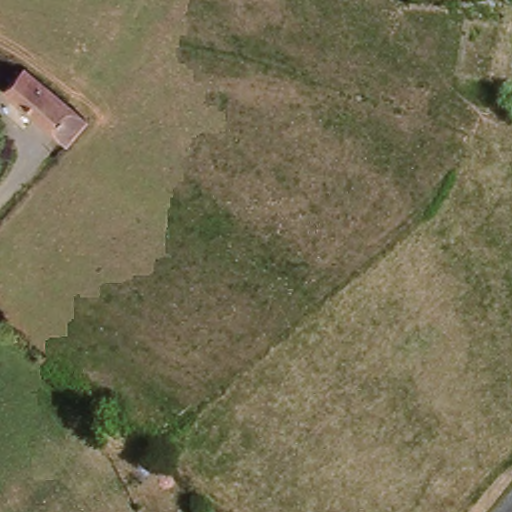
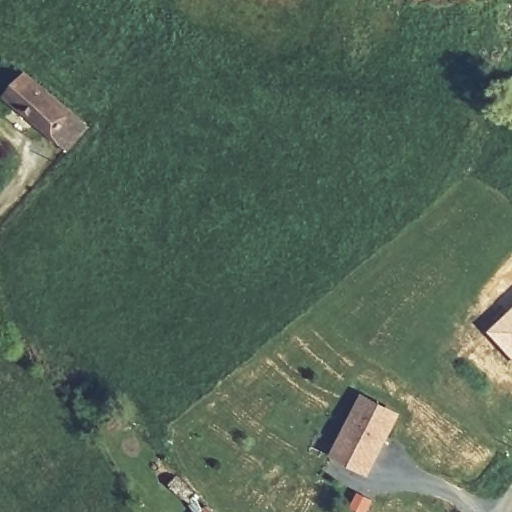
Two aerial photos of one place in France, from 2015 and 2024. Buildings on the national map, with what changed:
unchanged [(66,145),(15,97),(38,72),(88,119),(66,145)]
new [(486,330),(512,307),(512,359),(486,330)]
new [(330,457),(361,393),(402,413),(371,476),(330,457)]

